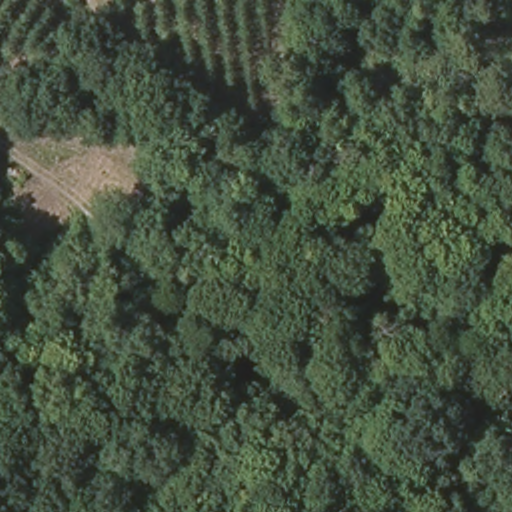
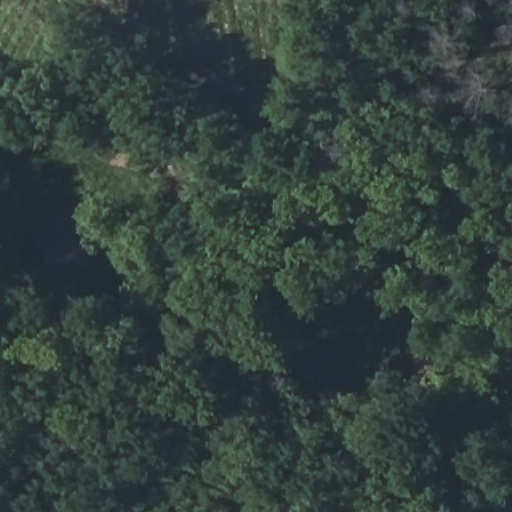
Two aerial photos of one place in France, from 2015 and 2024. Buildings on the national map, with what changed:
[]

